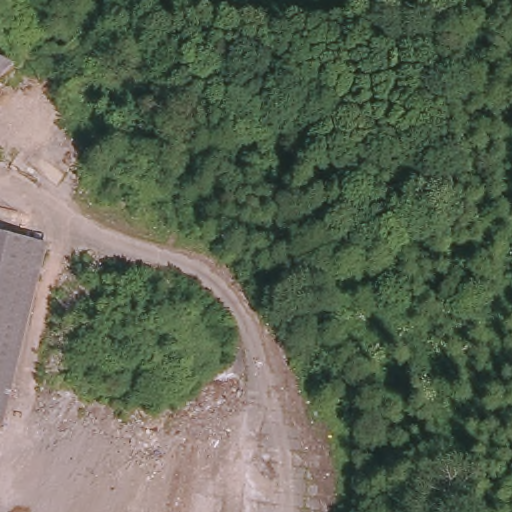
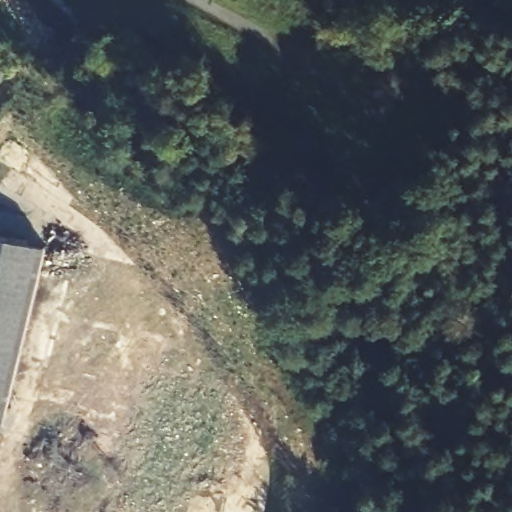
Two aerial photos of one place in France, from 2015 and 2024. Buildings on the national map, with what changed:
unchanged [(0,75),(0,54),(16,63),(0,75)]
unchanged [(5,426),(0,424),(0,226),(53,239),(5,426)]

